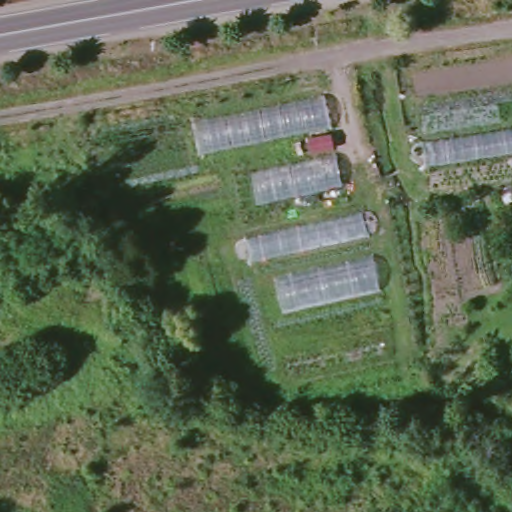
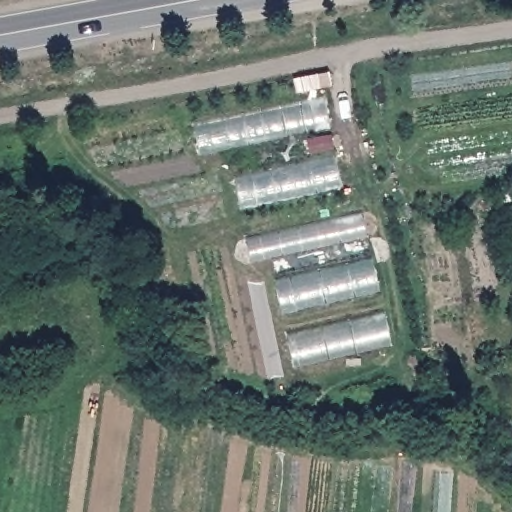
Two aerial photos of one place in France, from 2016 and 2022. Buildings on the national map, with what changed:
unchanged [(332,129),(199,155),(190,121),(323,93),(332,129)]
unchanged [(340,189),(239,209),(232,177),(334,156),(340,189)]
unchanged [(246,239),(364,213),(369,234),(251,261),(246,239)]
unchanged [(380,287),(282,310),(275,280),(373,257),(380,287)]
new [(287,333),(384,311),(392,345),(296,368),(287,333)]

